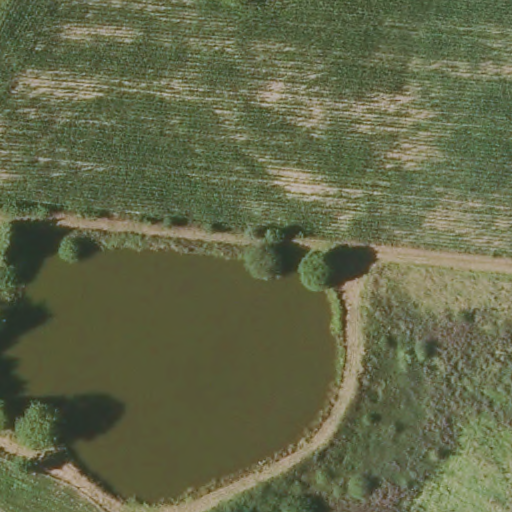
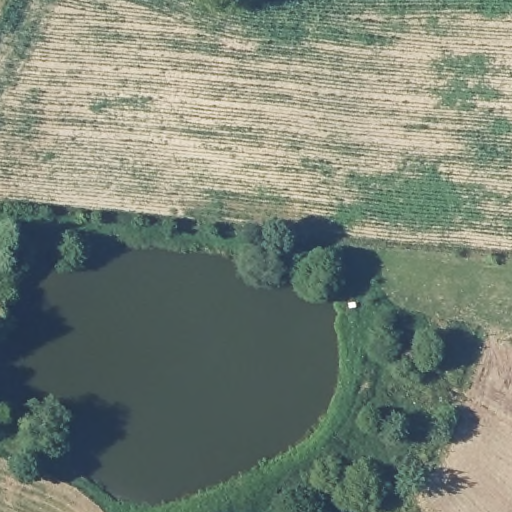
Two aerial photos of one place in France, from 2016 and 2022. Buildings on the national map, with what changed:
[]

